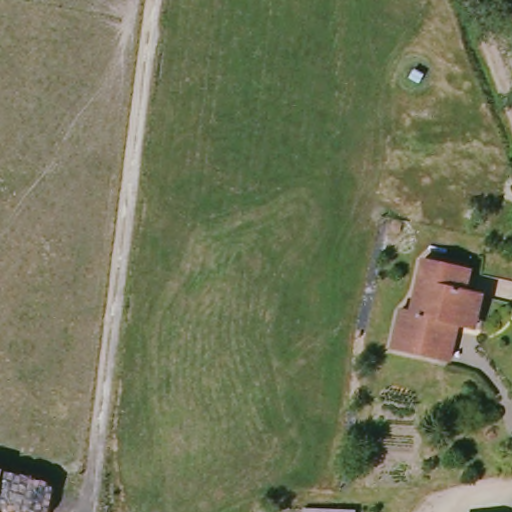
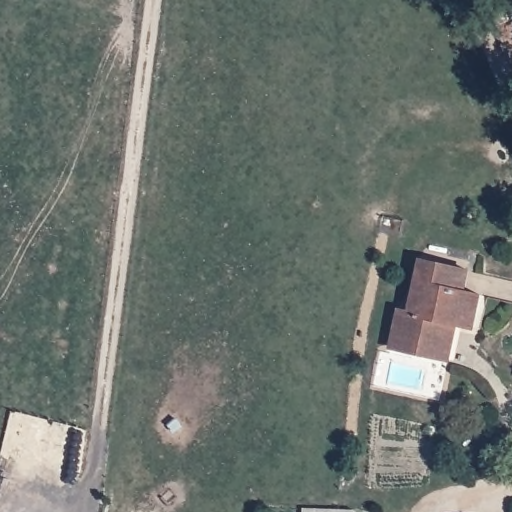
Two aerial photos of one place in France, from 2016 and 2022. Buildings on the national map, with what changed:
unchanged [(455,289),(476,292),(474,314),(458,314),(458,322),(444,325),(441,358),(416,356),(418,341),(395,339),(397,315),(407,314),(414,263),(458,269),(455,289)]
unchanged [(301,512),(301,510),(343,512),(301,512)]

